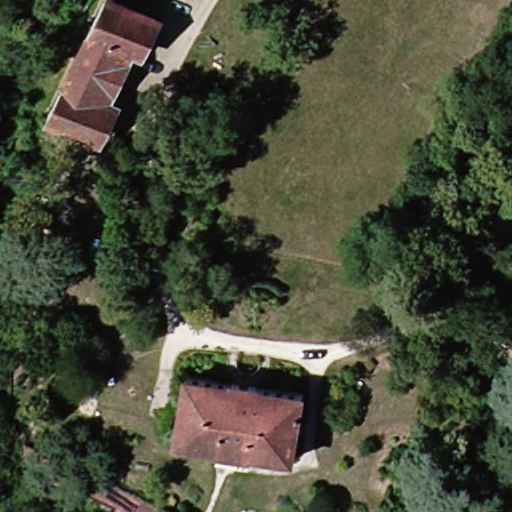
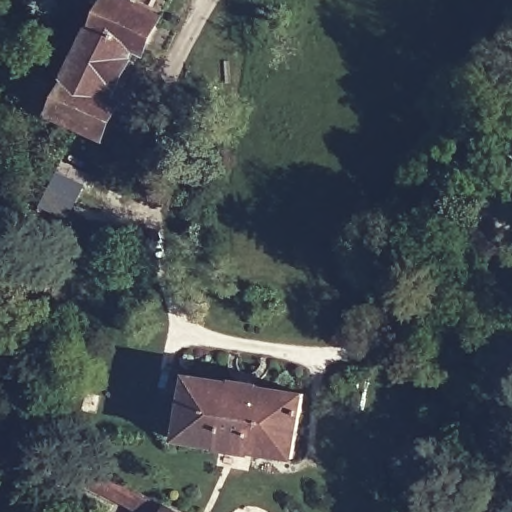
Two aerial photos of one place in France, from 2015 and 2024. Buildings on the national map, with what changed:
unchanged [(84,131),(53,113),(107,0),(121,0),(170,26),(147,70),(140,68),(127,103),(130,105),(113,146),(84,131)]
new [(41,205),(66,161),(92,175),(67,220),(41,205)]
unchanged [(191,372),(311,396),(302,461),(180,443),(191,372)]
unchanged [(37,458),(49,439),(202,512),(135,512),(40,466),(37,458)]

